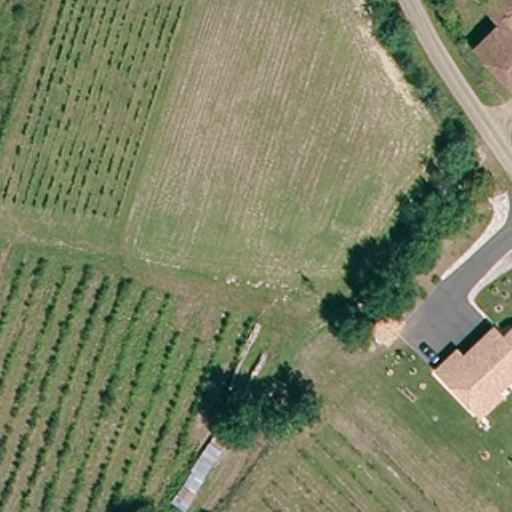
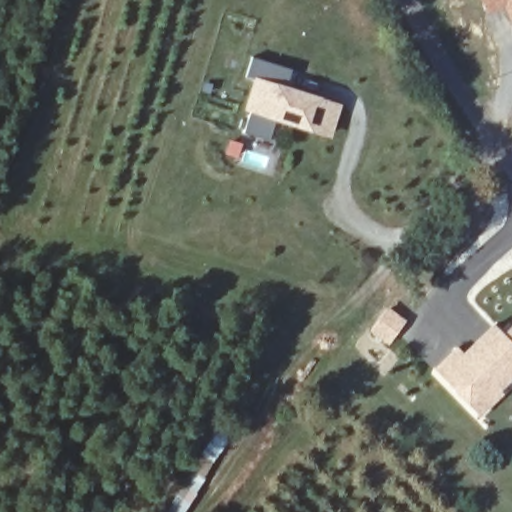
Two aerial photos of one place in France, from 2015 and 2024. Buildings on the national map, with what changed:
demolished [(509,69),(472,35),(494,12),(482,0),(512,0),(512,66),(509,69)]
new [(510,23),(503,7),(487,15),(480,0),(512,0),(512,22),(510,23)]
new [(342,105),(330,138),(275,121),(269,139),(242,132),(249,112),(243,111),(252,80),(243,76),(250,56),(291,70),(286,86),(342,105)]
unchanged [(494,388),(496,391),(474,412),(463,401),(431,367),(453,346),(459,352),(474,337),(481,331),(489,323),(499,334),(509,325),(512,324),(512,372),(494,388)]

